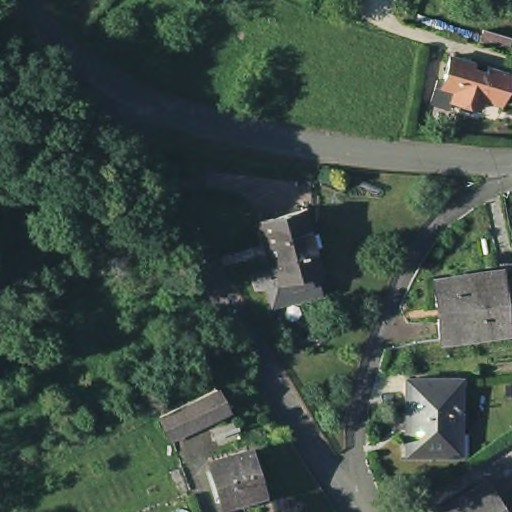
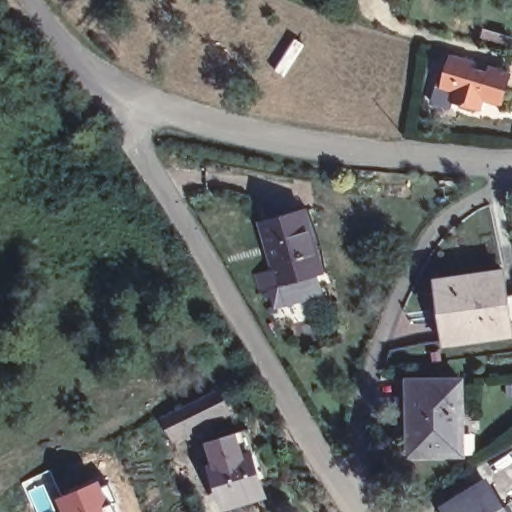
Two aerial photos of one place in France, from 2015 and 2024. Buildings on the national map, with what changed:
unchanged [(510,36),(506,49),(480,41),(485,28),(510,36)]
unchanged [(472,61),(469,70),(482,74),(485,65),(507,71),(497,104),(478,98),(475,109),(448,101),(453,85),(440,81),(447,57),(448,58),(450,54),(472,61)]
unchanged [(270,282),(260,286),(256,269),(265,267),(266,270),(276,267),(262,216),(304,204),(321,267),(315,269),(320,288),(285,298),(275,301),(270,282)]
unchanged [(503,335),(440,343),(431,281),(500,272),(503,296),(512,294),(512,334),(508,334),(503,335)]
unchanged [(407,381),(460,380),(462,456),(408,457),(407,381)]
unchanged [(228,416),(173,443),(162,420),(218,393),(228,416)]
unchanged [(268,500),(228,512),(215,469),(255,457),(268,500)]
new [(104,483),(122,512),(61,512),(54,497),(100,476),(104,483)]
unchanged [(512,497),(500,504),(493,492),(512,481),(512,497)]
unchanged [(480,483),(499,512),(441,512),(439,510),(480,483)]
unchanged [(504,512),(499,512),(502,510),(504,512)]

